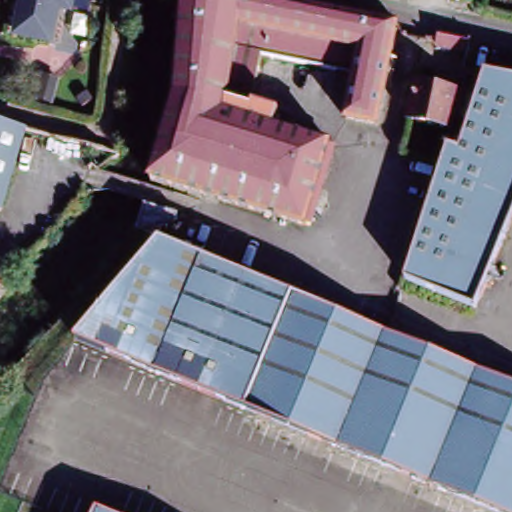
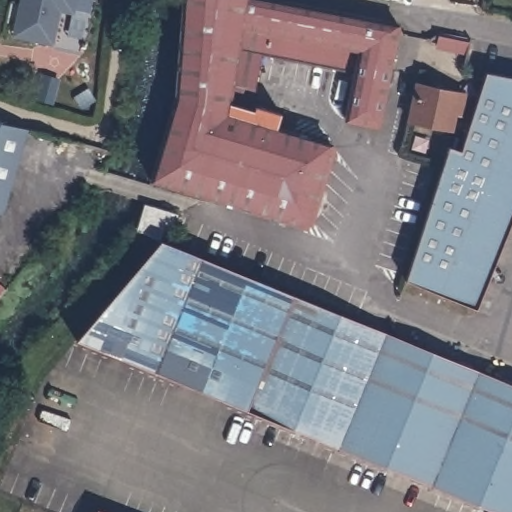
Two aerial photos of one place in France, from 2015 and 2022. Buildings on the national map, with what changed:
unchanged [(15,25),(21,0),(56,0),(48,32),(15,25)]
unchanged [(56,0),(88,0),(85,7),(56,0)]
unchanged [(344,122),(353,77),(261,60),(251,109),(278,117),(273,132),(168,102),(173,0),(265,0),(329,12),(399,26),(377,129),(344,122)]
unchanged [(467,61),(439,56),(441,44),(442,44),(459,47),(469,49),(469,50),(468,53),(467,61)]
unchanged [(54,74),(48,96),(35,92),(41,70),(54,74)]
unchanged [(487,70),(512,74),(512,208),(474,308),(404,281),(448,151),(459,154),(461,150),(484,77),(487,70)]
unchanged [(461,95),(457,115),(452,115),(448,132),(407,123),(414,85),(461,95)]
unchanged [(311,230),(304,228),(304,231),(147,187),(167,107),(168,102),(273,132),(328,147),(327,151),(334,152),(311,230)]
unchanged [(16,143),(3,199),(0,203),(0,116),(20,122),(16,143)]
unchanged [(163,241),(156,240),(156,243),(153,250),(129,242),(131,232),(136,215),(168,225),(163,241)]
unchanged [(236,408),(152,373),(74,340),(134,272),(153,250),(156,249),(162,252),(358,329),(382,337),(452,366),(497,385),(512,391),(512,512),(483,512),(236,408)]
unchanged [(94,507),(105,512),(92,512),(94,507)]

